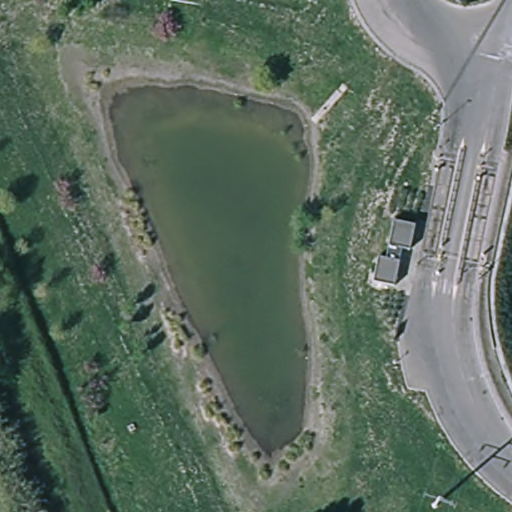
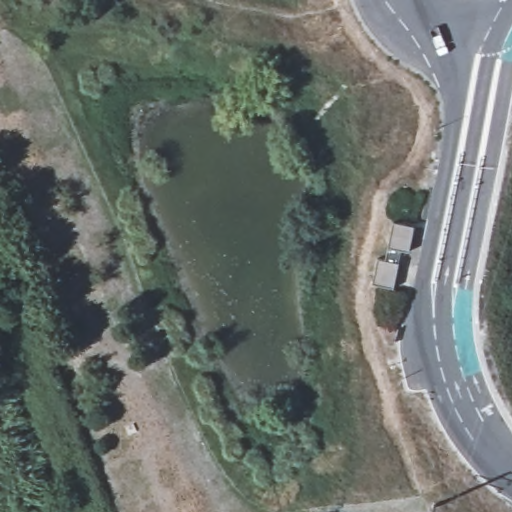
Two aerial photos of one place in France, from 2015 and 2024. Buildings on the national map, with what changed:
unchanged [(394,218),(415,222),(410,248),(388,244),(394,218)]
unchanged [(399,258),(394,284),(372,280),(378,254),(399,258)]

